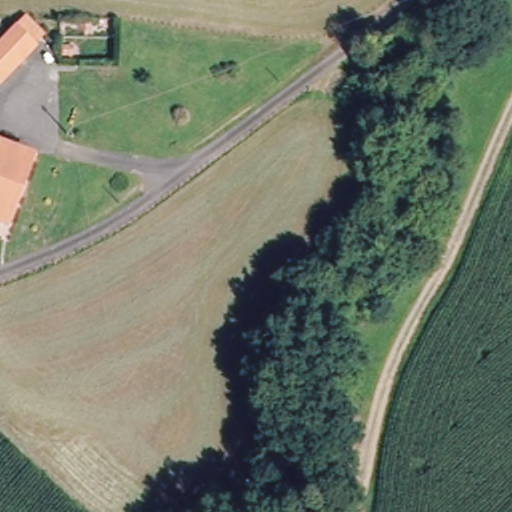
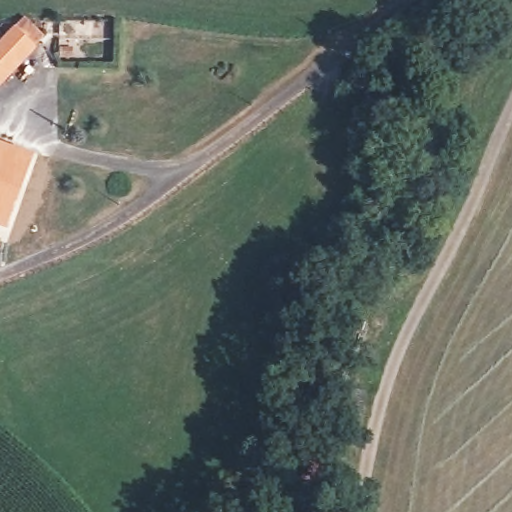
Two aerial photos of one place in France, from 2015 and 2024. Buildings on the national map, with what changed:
unchanged [(0,87),(0,52),(5,47),(18,36),(31,49),(37,52),(28,63),(0,87)]
unchanged [(26,150),(0,220),(0,142),(26,150)]

